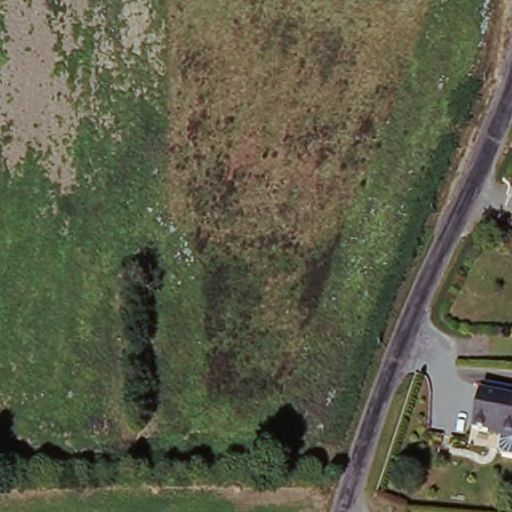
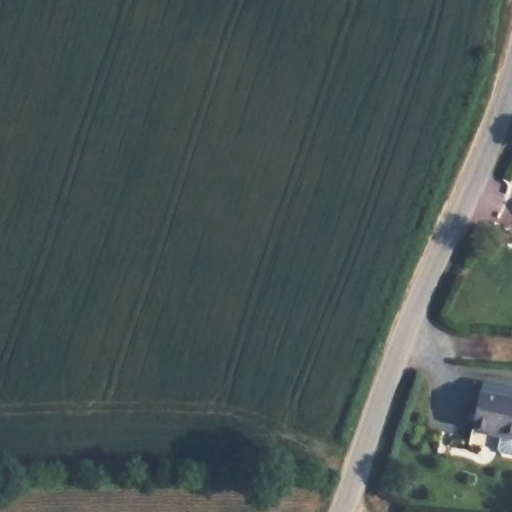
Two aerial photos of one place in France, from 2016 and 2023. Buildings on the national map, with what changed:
unchanged [(512,439),(478,431),(486,393),(512,399),(512,439)]

